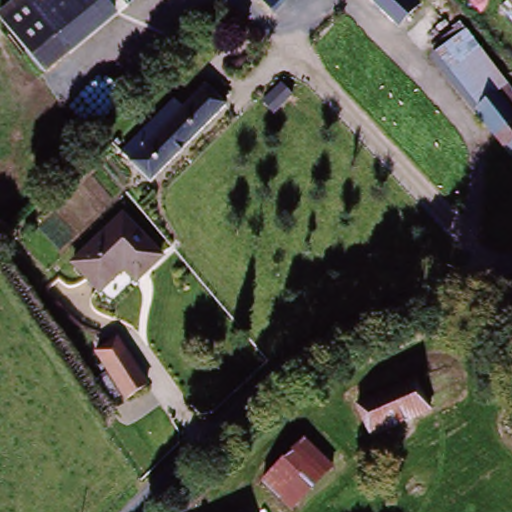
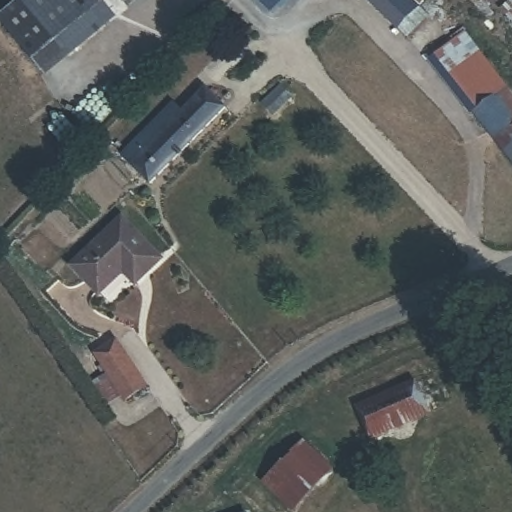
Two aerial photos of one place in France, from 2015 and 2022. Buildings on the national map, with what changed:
unchanged [(49,81),(0,27),(29,0),(101,0),(118,19),(49,81)]
unchanged [(410,10),(393,28),(364,0),(399,0),(410,10)]
unchanged [(509,0),(512,0),(512,27),(498,11),(509,0)]
unchanged [(471,113),(447,82),(470,64),(494,95),(471,113)]
unchanged [(223,111),(152,185),(127,160),(153,133),(145,123),(173,98),(185,111),(205,91),(223,111)]
unchanged [(512,118),(512,164),(471,113),(494,95),(512,118)]
unchanged [(126,263),(98,285),(79,258),(130,217),(160,258),(136,277),(126,263)]
unchanged [(113,339),(142,384),(121,398),(93,353),(113,339)]
unchanged [(428,411),(370,441),(355,411),(412,382),(428,411)]
unchanged [(301,439),(330,467),(290,508),(260,479),(301,439)]

